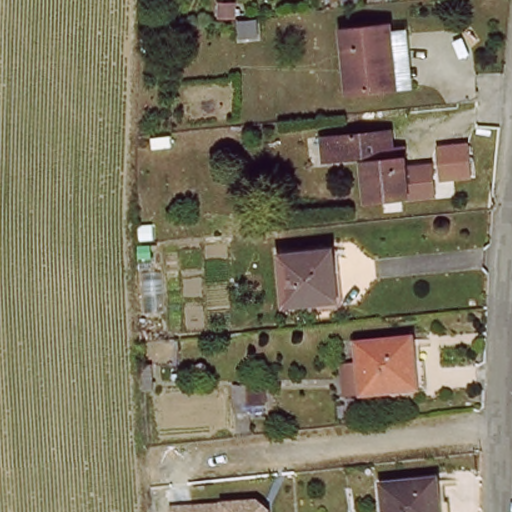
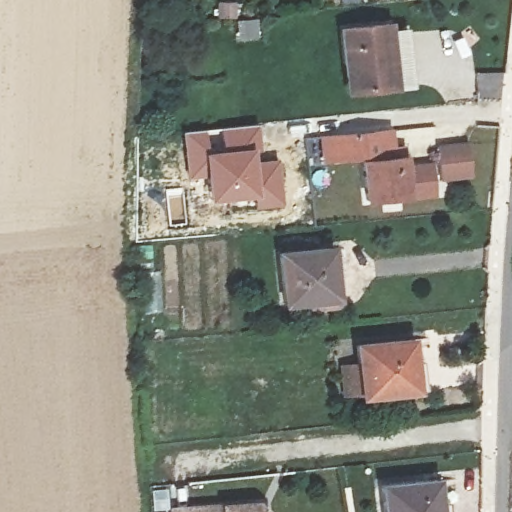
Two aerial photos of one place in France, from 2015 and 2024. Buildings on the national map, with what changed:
unchanged [(393,24),(394,36),(405,36),(411,85),(350,96),(341,29),(393,24)]
new [(255,160),(254,197),(208,201),(203,177),(188,181),(181,131),(205,129),(258,123),(260,147),(254,148),(255,155),(255,160)]
unchanged [(391,130),(394,155),(406,154),(408,169),(433,166),(436,195),(369,203),(364,159),(326,164),(323,139),(391,130)]
new [(255,160),(280,159),(284,208),(255,211),(254,197),(255,160)]
new [(151,243),(153,271),(161,271),(164,313),(140,315),(131,245),(151,243)]
unchanged [(329,250),(330,257),(336,257),(339,302),(335,310),(310,312),(309,304),(283,306),(278,256),(329,250)]
unchanged [(266,275),(268,294),(248,296),(245,278),(266,275)]
unchanged [(414,335),(422,390),(364,397),(358,344),(414,335)]
unchanged [(269,387),(270,409),(268,410),(268,416),(263,417),(261,424),(250,425),(248,387),(269,387)]
unchanged [(436,481),(439,512),(380,512),(378,489),(436,481)]
unchanged [(260,503),(270,512),(175,512),(260,503)]

